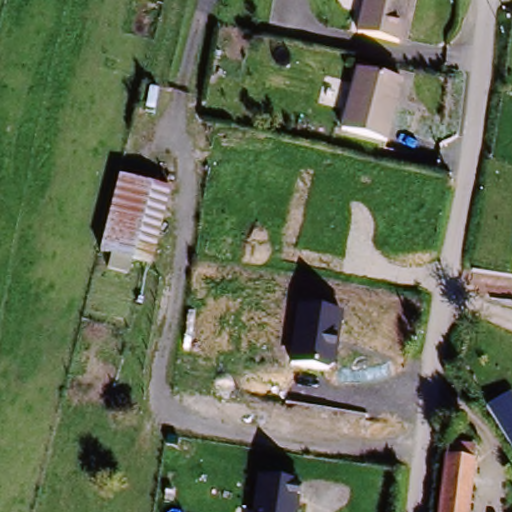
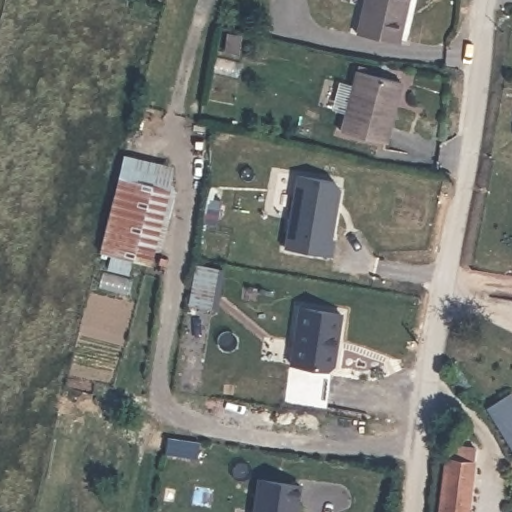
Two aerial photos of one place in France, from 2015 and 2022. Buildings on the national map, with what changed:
unchanged [(404,48),(359,37),(366,10),(353,7),(354,0),(412,0),(404,48)]
unchanged [(397,90),(385,147),(340,139),(354,80),(397,90)]
new [(298,179),(336,185),(340,190),(331,242),(336,243),(333,260),(286,251),(298,179)]
unchanged [(101,257),(121,182),(173,195),(153,271),(101,257)]
new [(218,273),(212,311),(192,308),(199,270),(218,273)]
unchanged [(340,316),(332,370),(290,362),(297,308),(340,316)]
unchanged [(489,413),(488,412),(512,398),(512,450),(495,423),(489,413)]
unchanged [(437,512),(447,448),(473,452),(464,512),(437,512)]
unchanged [(298,512),(253,512),(257,480),(301,484),(298,512)]

